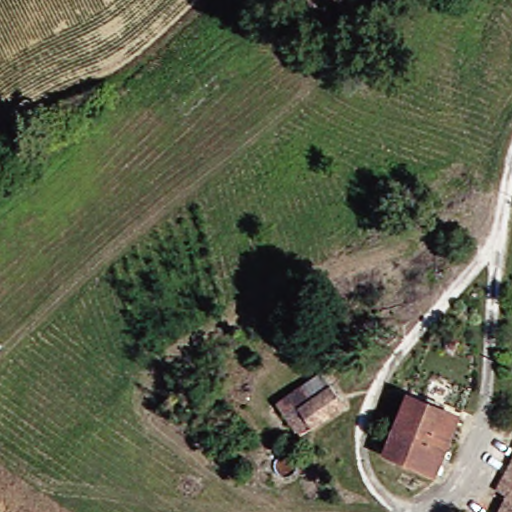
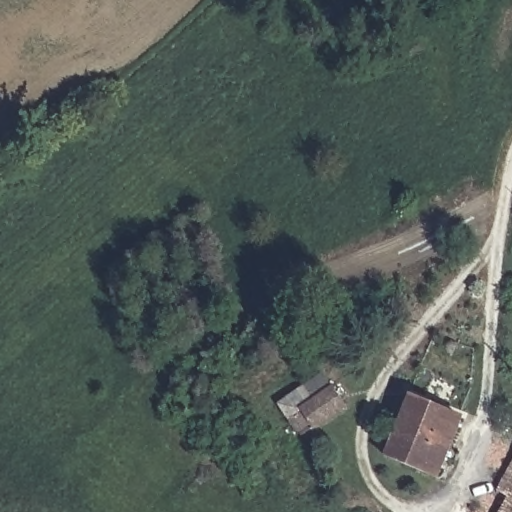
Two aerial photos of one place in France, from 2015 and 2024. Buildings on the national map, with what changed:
unchanged [(339,387),(355,408),(326,427),(323,423),(311,432),(298,413),(339,387)]
unchanged [(448,478),(396,460),(422,387),(471,407),(448,478)]
unchanged [(512,478),(512,492),(507,490),(512,478)]

